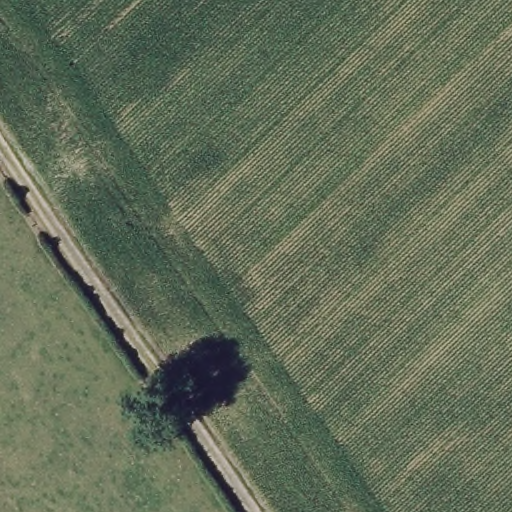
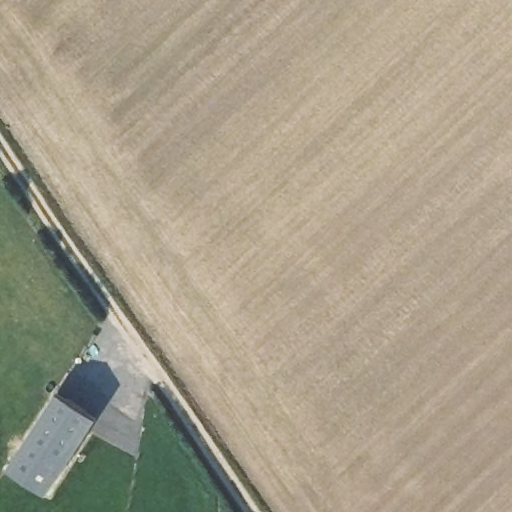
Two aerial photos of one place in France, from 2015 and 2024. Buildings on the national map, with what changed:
new [(97,418),(47,495),(7,470),(57,392),(97,418)]

